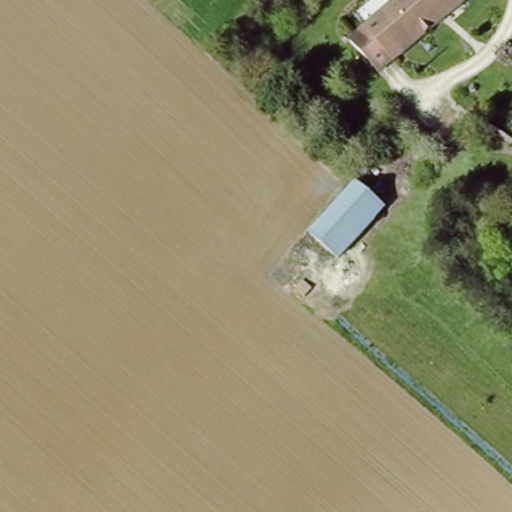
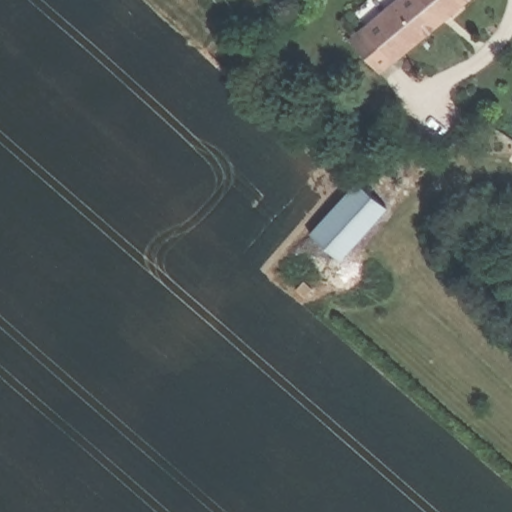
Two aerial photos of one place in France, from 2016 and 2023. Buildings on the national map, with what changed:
unchanged [(394,71),(366,37),(409,0),(468,0),(415,51),(394,71)]
unchanged [(389,207),(337,263),(303,232),(356,178),(389,207)]

